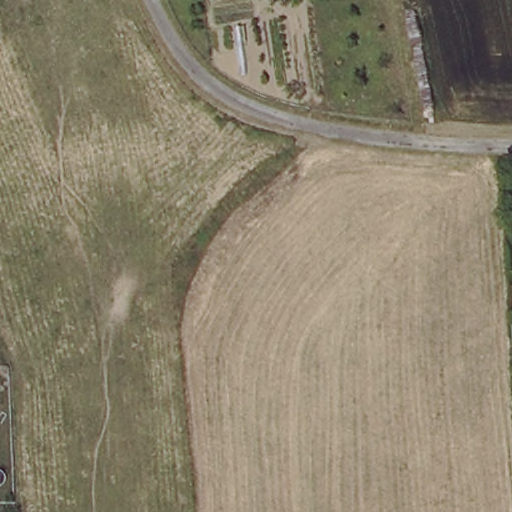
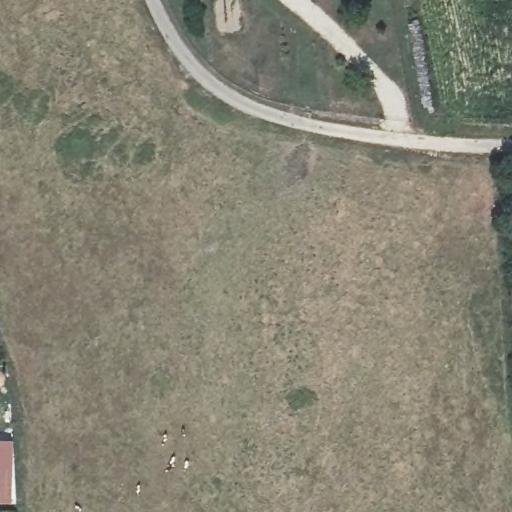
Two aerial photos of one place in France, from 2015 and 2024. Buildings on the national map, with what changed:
new [(13,440),(14,503),(0,503),(0,440),(13,440)]

